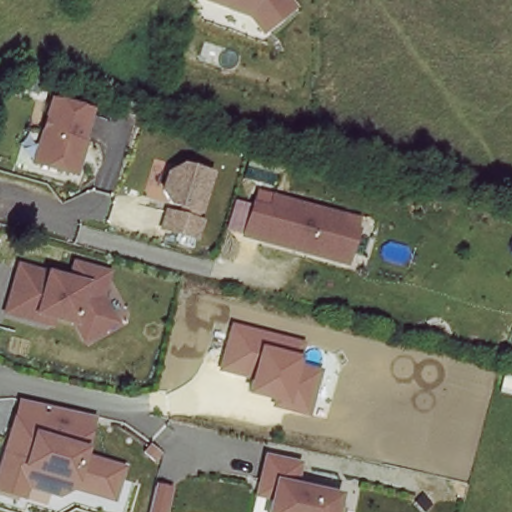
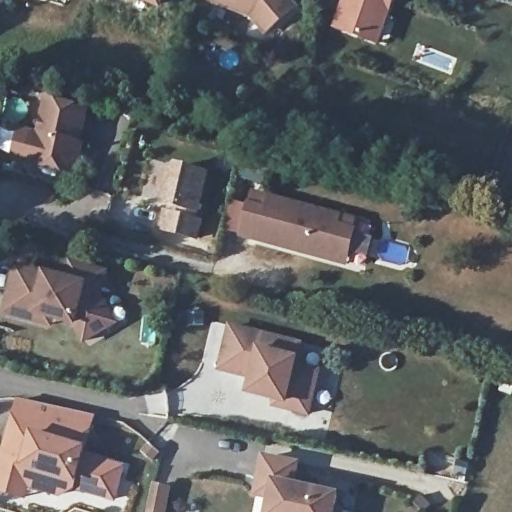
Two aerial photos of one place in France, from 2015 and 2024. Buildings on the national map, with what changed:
new [(160,10),(137,0),(164,0),(160,10)]
unchanged [(250,17),(202,0),(289,0),(295,8),(263,32),(250,17)]
new [(379,43),(332,27),(343,0),(395,0),(379,43)]
unchanged [(28,165),(47,98),(92,112),(75,177),(28,165)]
unchanged [(159,231),(166,205),(156,190),(162,173),(179,165),(209,173),(199,217),(204,219),(198,243),(159,231)]
unchanged [(265,207),(267,198),(345,215),(344,224),(358,228),(347,266),(241,239),(249,203),(265,207)]
unchanged [(65,278),(70,262),(105,270),(99,300),(117,330),(83,348),(70,327),(56,323),(52,329),(4,317),(17,265),(65,278)]
unchanged [(310,417),(272,407),(274,401),(246,394),(249,379),(219,371),(229,325),(304,343),(299,364),(322,371),(310,417)]
unchanged [(17,400),(98,418),(89,448),(87,455),(125,466),(115,503),(73,491),(62,497),(29,488),(25,499),(0,492),(0,459),(17,400)]
unchanged [(300,484),(339,493),(336,505),(350,507),(349,512),(267,512),(268,503),(255,500),(264,454),(303,460),(300,484)]
new [(177,484),(172,509),(171,512),(155,512),(157,506),(162,482),(177,484)]

